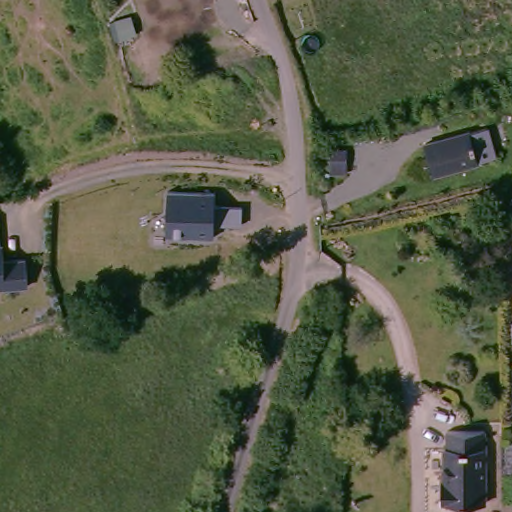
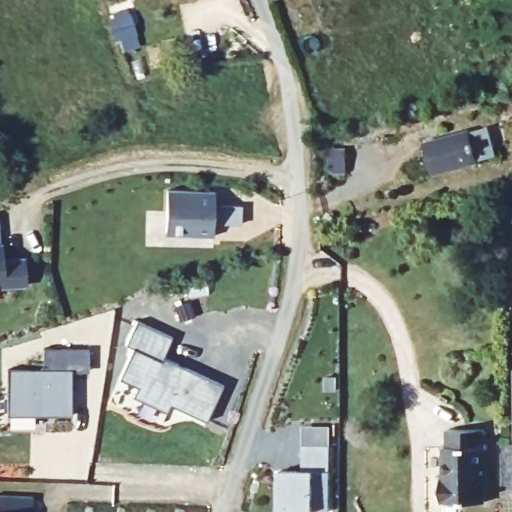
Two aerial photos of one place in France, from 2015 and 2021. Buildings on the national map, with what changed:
unchanged [(465,135),(465,136),(482,132),(489,161),(472,165),(473,166),(426,177),(419,146),(465,135)]
unchanged [(242,225),(214,224),(213,235),(166,233),(166,191),(215,193),(216,204),(241,205),(242,225)]
unchanged [(9,275),(0,276),(0,210),(1,210),(6,252),(29,250),(32,276),(10,279),(9,275)]
new [(133,349),(126,346),(136,322),(173,338),(164,358),(224,384),(208,421),(172,405),(168,413),(134,398),(138,388),(119,380),(133,349)]
new [(7,370),(43,370),(43,349),(72,350),(89,350),(89,373),(72,373),(72,413),(72,416),(7,416),(7,413),(7,370)]
unchanged [(490,431),(489,505),(445,504),(446,480),(450,480),(451,448),(451,431),(490,431)]
new [(330,511),(313,510),(313,512),(291,512),(291,510),(278,510),(278,469),(303,470),(302,446),(329,446),(330,511)]
new [(31,512),(0,512),(0,496),(32,497),(31,512)]

